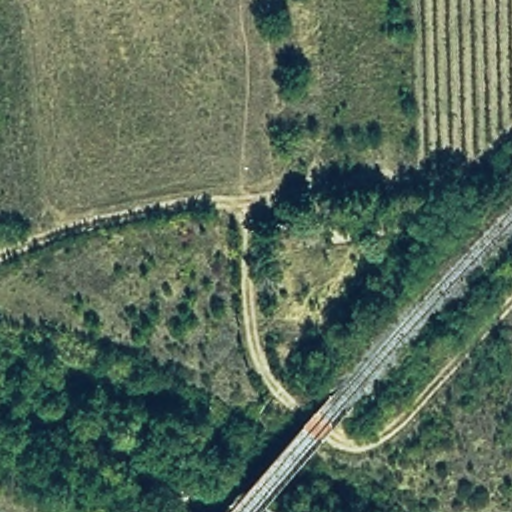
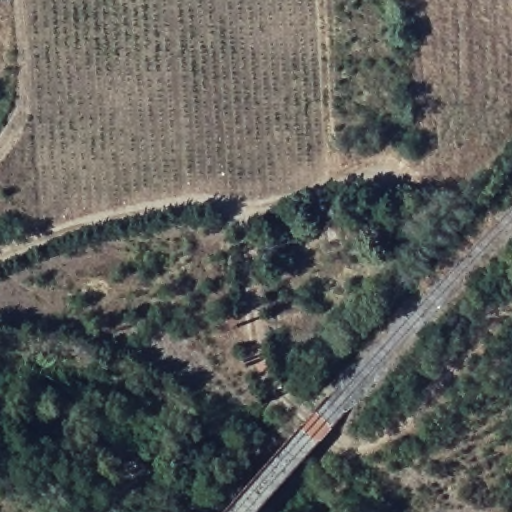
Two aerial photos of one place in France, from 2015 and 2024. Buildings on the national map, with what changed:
unchanged [(286,218),(309,219),(311,239),(286,242),(286,218)]

